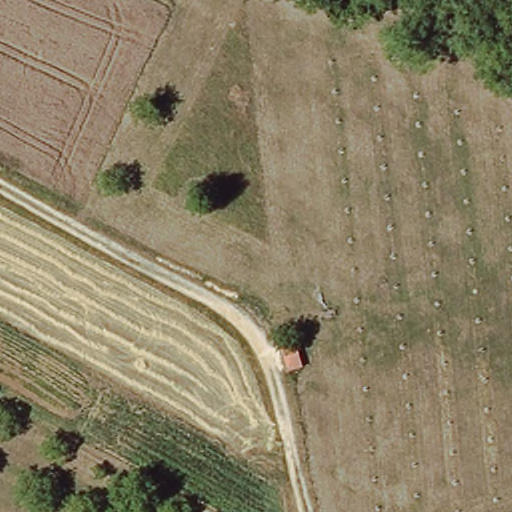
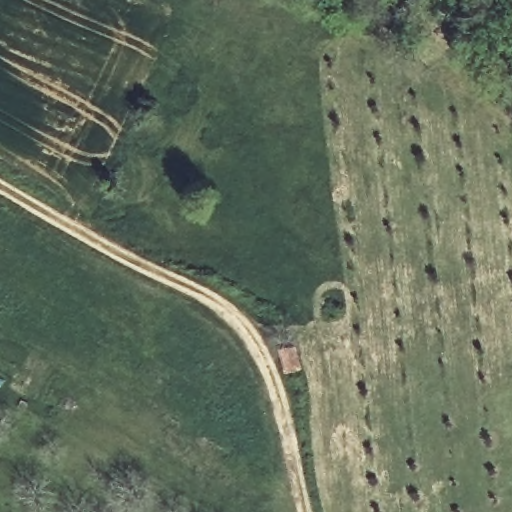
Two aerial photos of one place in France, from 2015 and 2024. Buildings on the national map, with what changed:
unchanged [(285,375),(280,348),(296,344),(301,371),(285,375)]

